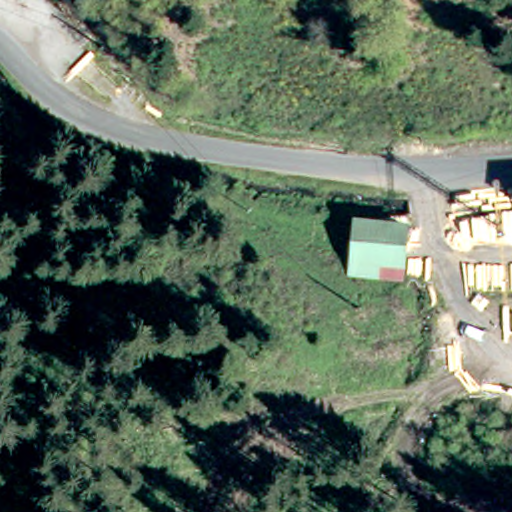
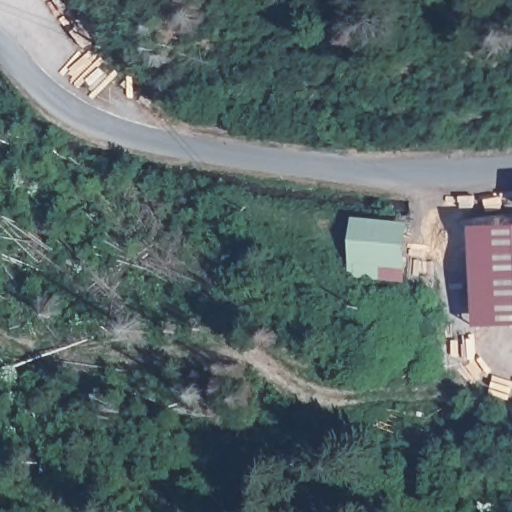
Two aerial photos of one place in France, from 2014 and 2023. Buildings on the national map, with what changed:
new [(512,326),(476,327),(473,228),(512,227),(512,326)]
unchanged [(354,229),(407,236),(401,274),(349,266),(354,229)]

